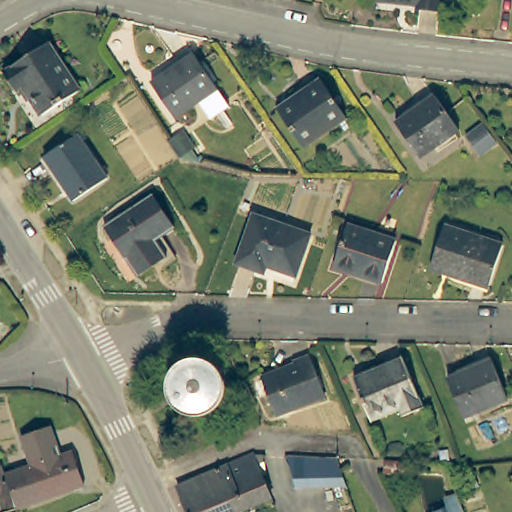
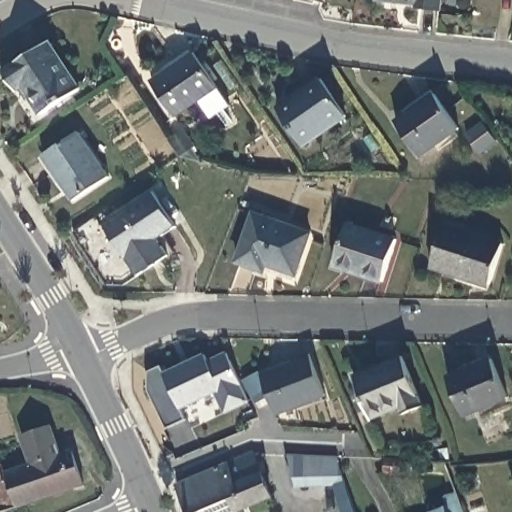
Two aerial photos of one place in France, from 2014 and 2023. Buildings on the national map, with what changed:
unchanged [(422,7),(422,2),(402,0),(442,0),(441,9),(422,7)]
unchanged [(17,86),(22,82),(10,64),(43,41),(75,87),(36,113),(17,86)]
unchanged [(149,82),(192,53),(216,89),(174,117),(149,82)]
unchanged [(273,109),(318,79),(342,115),(299,145),(273,109)]
unchanged [(433,95),(457,129),(417,156),(394,123),(433,95)]
unchanged [(479,154),(465,135),(482,122),(494,139),(495,141),(479,154)]
unchanged [(42,156),(76,134),(106,177),(72,200),(42,156)]
unchanged [(174,229),(156,240),(167,256),(137,274),(112,237),(103,225),(109,221),(150,193),(174,229)]
unchanged [(250,214),(307,233),(291,280),(235,261),(250,214)]
unchanged [(346,224),(395,241),(381,282),(332,266),(346,224)]
unchanged [(442,225),(500,245),(486,287),(429,268),(442,225)]
new [(245,400),(220,412),(214,397),(160,427),(140,388),(141,368),(156,360),(162,368),(199,351),(205,359),(221,351),(245,400)]
unchanged [(292,362),(291,359),(307,352),(323,392),(275,412),(260,377),(292,362)]
unchanged [(353,375),(402,356),(422,405),(402,413),(399,406),(370,417),(353,375)]
unchanged [(490,358),(507,397),(462,415),(446,377),(490,358)]
unchanged [(4,474),(31,464),(20,436),(47,425),(59,453),(70,449),(82,482),(15,509),(4,474)]
unchanged [(270,495),(230,512),(189,512),(177,484),(252,453),(270,495)]
unchanged [(286,489),(286,457),(338,456),(338,467),(345,485),(323,486),(286,489)]
unchanged [(410,472),(385,469),(386,457),(411,459),(410,472)]
unchanged [(15,509),(6,512),(0,512),(0,465),(4,474),(15,509)]
unchanged [(430,511),(446,505),(450,494),(457,491),(465,512),(430,512),(430,511)]

